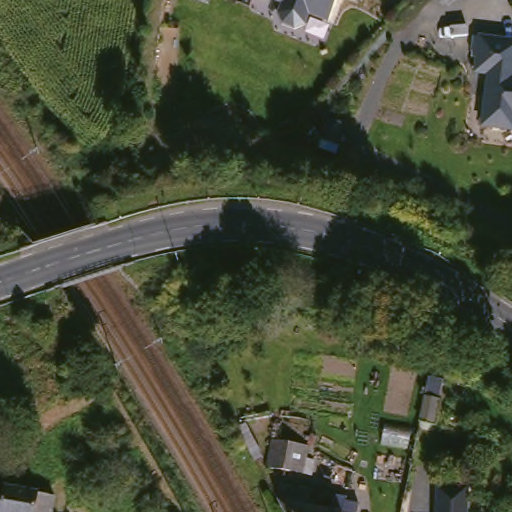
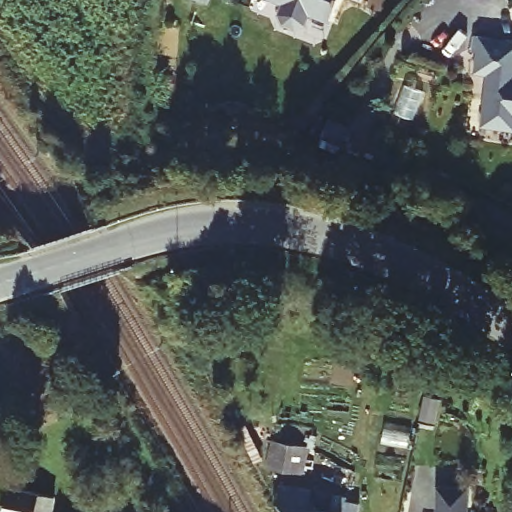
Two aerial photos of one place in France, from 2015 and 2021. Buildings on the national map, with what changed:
unchanged [(312,12),(308,23),(298,27),(285,22),(281,12),(285,2),(282,0),(340,0),(332,20),(312,12)]
unchanged [(494,74),(480,72),(483,52),(476,51),(478,36),(512,41),(512,129),(486,125),(494,74)]
unchanged [(419,396),(434,398),(430,422),(415,420),(419,396)]
unchanged [(263,472),(268,446),(302,452),(298,477),(263,472)]
unchanged [(432,487),(463,488),(462,512),(432,512),(432,487)]
unchanged [(268,507),(271,491),(300,497),(298,512),(271,512),(268,507)]
unchanged [(10,506),(12,496),(52,503),(50,512),(0,512),(0,503),(10,506)]
unchanged [(324,501),(338,502),(337,507),(349,510),(349,512),(322,512),(324,501)]

